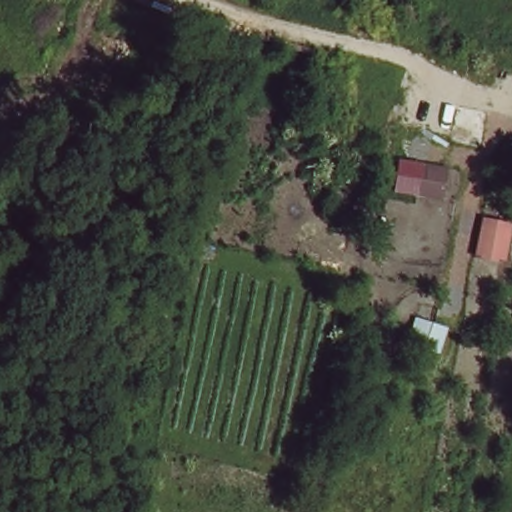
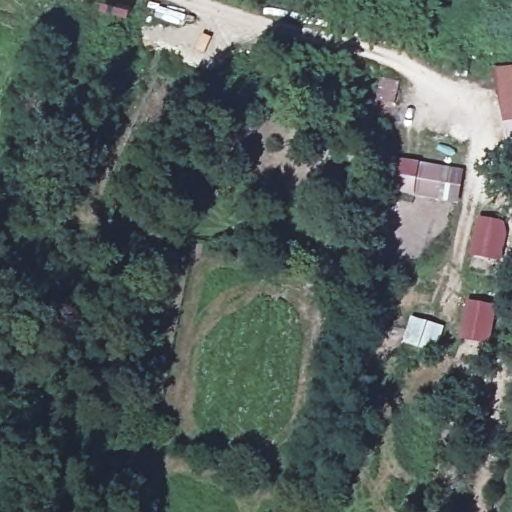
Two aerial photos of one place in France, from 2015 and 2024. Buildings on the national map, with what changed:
new [(507,148),(494,70),(512,68),(512,147),(507,148)]
unchanged [(447,200),(437,199),(389,191),(394,160),(442,167),(453,169),(447,200)]
unchanged [(470,258),(479,221),(508,226),(500,265),(470,258)]
unchanged [(433,351),(400,340),(409,310),(441,319),(433,351)]

